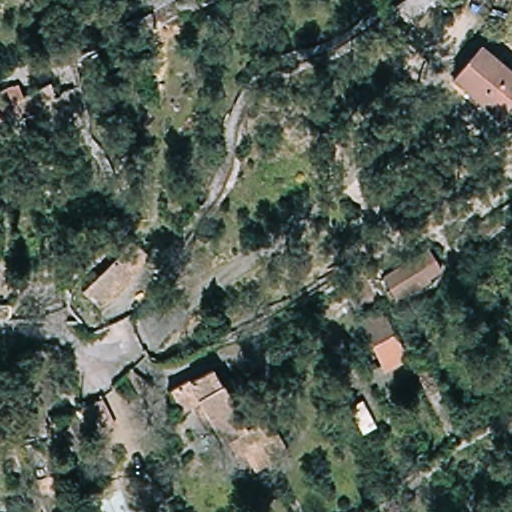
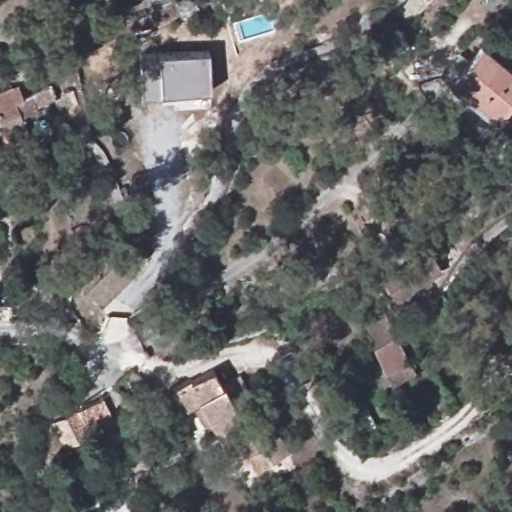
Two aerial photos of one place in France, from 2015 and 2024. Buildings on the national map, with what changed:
unchanged [(512,100),(497,116),(455,81),(483,50),(512,74),(512,100)]
new [(159,52),(159,54),(209,52),(210,92),(175,94),(175,98),(142,100),(140,56),(159,52)]
unchanged [(26,77),(31,91),(39,88),(46,106),(29,112),(32,122),(9,130),(2,112),(0,113),(0,87),(26,77)]
unchanged [(83,111),(63,117),(56,91),(74,85),(83,111)]
unchanged [(143,252),(90,302),(77,287),(129,239),(143,252)]
unchanged [(436,281),(422,285),(421,291),(405,295),(403,292),(389,295),(383,270),(430,256),(436,281)]
unchanged [(136,275),(144,261),(161,269),(155,284),(136,275)]
unchanged [(348,301),(342,287),(360,278),(374,307),(353,318),(344,303),(348,301)]
unchanged [(8,313),(0,312),(0,294),(9,295),(8,313)]
unchanged [(380,317),(387,333),(396,328),(405,347),(397,351),(410,378),(376,396),(367,378),(378,372),(357,327),(380,317)]
unchanged [(127,381),(138,365),(155,382),(145,390),(140,393),(126,381),(127,381)]
unchanged [(264,472),(251,478),(242,462),(234,465),(223,445),(217,447),(192,407),(174,417),(162,395),(181,382),(184,386),(198,377),(208,394),(215,391),(241,434),(243,434),(264,472)]
unchanged [(231,411),(217,389),(234,382),(245,402),(267,440),(273,437),(282,453),(286,461),(264,472),(243,434),(245,432),(231,411)]
unchanged [(44,431),(81,409),(104,395),(115,425),(82,437),(49,450),(44,431)]
unchanged [(41,502),(62,497),(66,512),(44,512),(41,502)]

